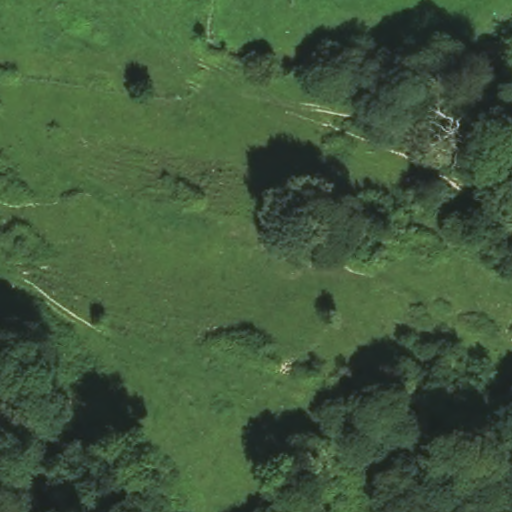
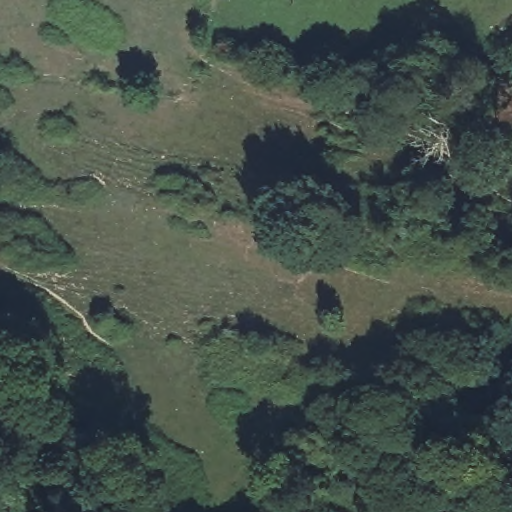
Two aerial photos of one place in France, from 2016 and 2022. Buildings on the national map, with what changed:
[]

